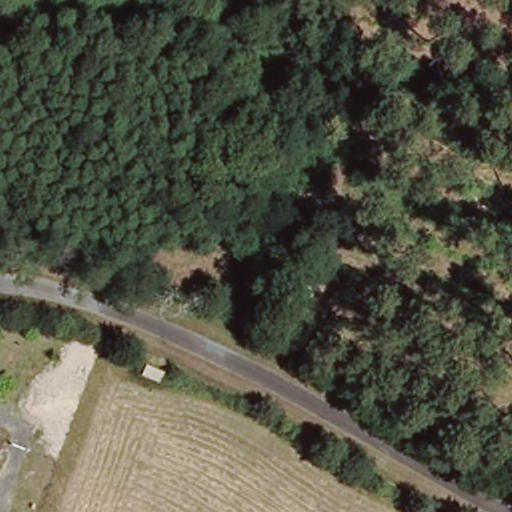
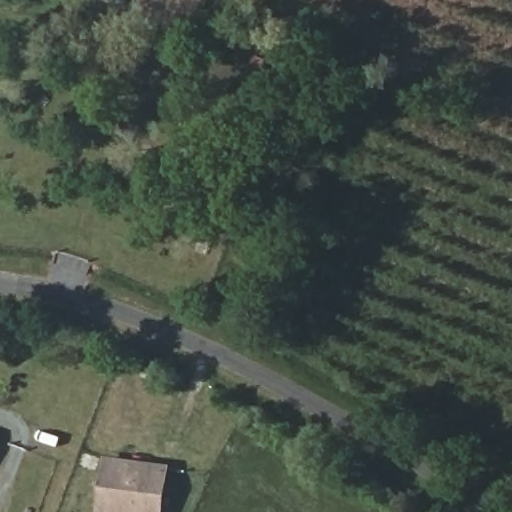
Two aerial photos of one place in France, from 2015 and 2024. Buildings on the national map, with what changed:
new [(106,456),(172,465),(166,512),(99,512),(106,456)]

